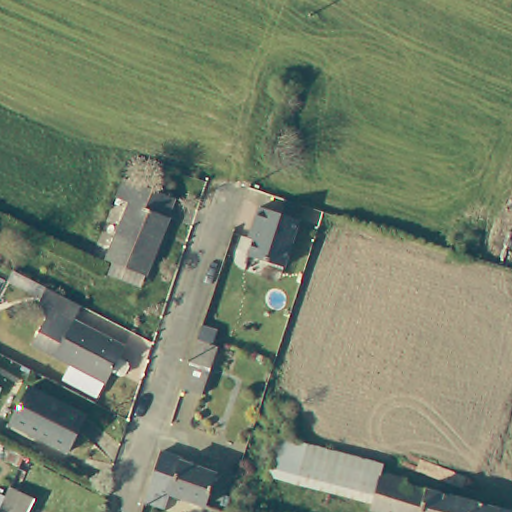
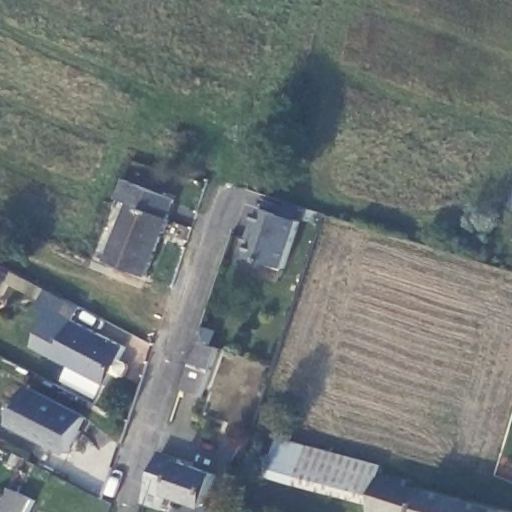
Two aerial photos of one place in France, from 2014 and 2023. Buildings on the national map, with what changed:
unchanged [(107,276),(112,263),(105,261),(129,204),(115,198),(124,179),(175,200),(167,218),(170,219),(141,289),(107,276)]
unchanged [(509,203),(507,202),(512,191),(512,204),(509,203)]
unchanged [(259,225),(255,224),(260,208),(300,221),(284,268),(248,256),(259,225)]
unchanged [(119,361),(125,364),(120,374),(114,371),(106,385),(103,383),(100,390),(80,380),(83,373),(30,346),(44,318),(37,301),(45,287),(71,302),(81,307),(74,320),(126,347),(119,361)]
unchanged [(181,394),(197,346),(201,332),(217,337),(213,351),(219,352),(202,401),(181,394)]
unchanged [(29,388),(86,417),(68,453),(10,424),(29,388)]
unchanged [(372,503),(295,483),(268,477),(278,438),(382,465),(380,472),(372,503)]
unchanged [(184,499),(179,512),(176,512),(160,506),(159,506),(165,488),(176,457),(196,465),(195,467),(231,480),(220,512),(184,499)]
unchanged [(370,511),(372,503),(380,472),(406,481),(405,486),(425,491),(425,490),(500,510),(500,512),(374,512),(370,511)]
unchanged [(11,492),(36,506),(32,512),(3,512),(11,492)]
unchanged [(500,510),(501,509),(512,512),(500,512),(500,510)]

